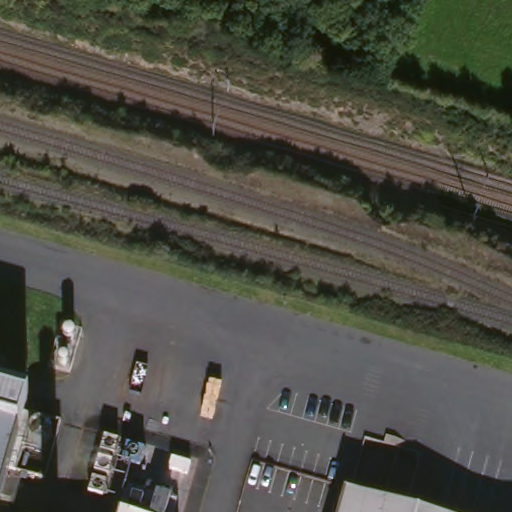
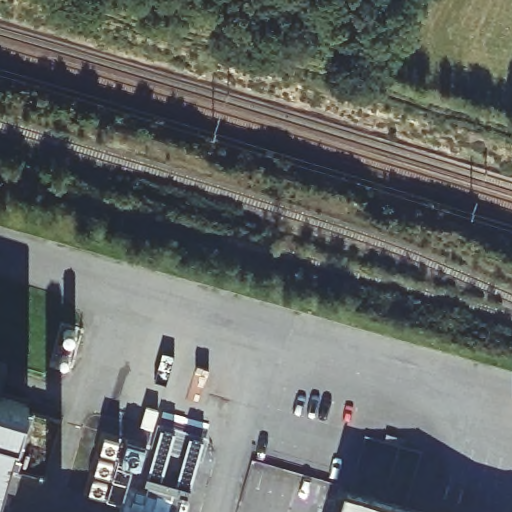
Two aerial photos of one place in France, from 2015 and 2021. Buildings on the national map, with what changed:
unchanged [(10,363),(1,395),(28,402),(0,497),(0,360),(10,363)]
unchanged [(178,502),(175,512),(120,512),(127,488),(178,502)]
unchanged [(339,512),(344,492),(414,512),(339,512)]

